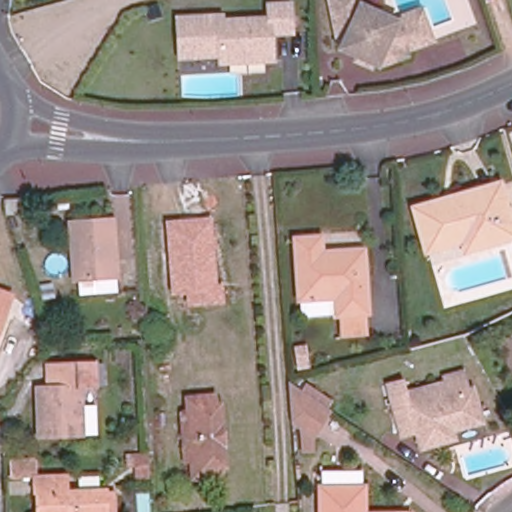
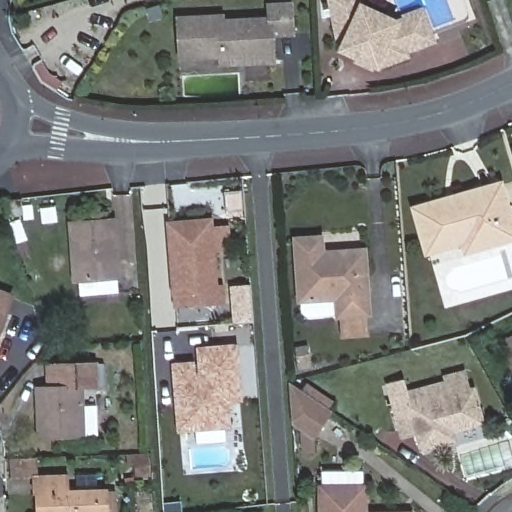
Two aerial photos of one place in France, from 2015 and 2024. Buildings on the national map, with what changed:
unchanged [(410,21),(426,14),(439,46),(411,56),(413,62),(388,70),(386,65),(383,72),(345,55),(349,46),(343,47),(335,0),(364,0),(366,11),(400,27),(410,23),(410,21)]
unchanged [(272,39),(273,65),(221,68),(221,60),(180,62),(179,23),(222,21),(222,27),(270,25),(270,11),(291,10),(292,38),(272,39)]
unchanged [(512,229),(512,237),(466,250),(463,241),(427,251),(415,209),(500,185),(512,229)]
unchanged [(23,214),(6,216),(5,201),(22,200),(23,214)]
unchanged [(225,305),(187,308),(185,295),(171,296),(165,221),(211,217),(217,285),(224,285),(225,305)]
unchanged [(120,278),(74,281),(70,223),(115,219),(120,278)]
unchanged [(370,336),(340,339),(337,298),(300,300),(296,240),(320,238),(321,253),(363,251),(370,336)]
unchanged [(0,330),(0,291),(12,296),(0,330)]
unchanged [(500,344),(512,338),(512,368),(500,344)]
new [(196,346),(237,345),(240,398),(225,399),(227,441),(197,444),(196,431),(177,433),(173,366),(198,364),(196,346)]
unchanged [(310,368),(298,370),(295,347),(306,346),(310,368)]
unchanged [(44,436),(42,389),(55,388),(53,366),(63,366),(100,364),(101,386),(86,386),(87,435),(44,436)]
unchanged [(453,432),(456,440),(421,450),(416,433),(401,437),(391,397),(388,385),(403,382),(405,393),(445,382),(445,377),(463,372),(469,390),(473,389),(483,424),(453,432)]
unchanged [(307,454),(305,427),(297,422),(294,382),(335,410),(320,436),(320,453),(307,454)]
demolished [(225,466),(220,467),(220,476),(201,477),(195,398),(215,396),(216,404),(221,404),(225,466)]
unchanged [(151,477),(137,477),(136,465),(129,466),(128,456),(149,455),(151,477)]
unchanged [(40,475),(20,476),(20,462),(40,461),(40,475)]
unchanged [(321,512),(320,487),(320,470),(362,476),(362,487),(365,487),(365,512),(321,512)]
unchanged [(41,491),(40,478),(71,477),(71,492),(110,491),(111,512),(44,512),(43,491),(41,491)]

